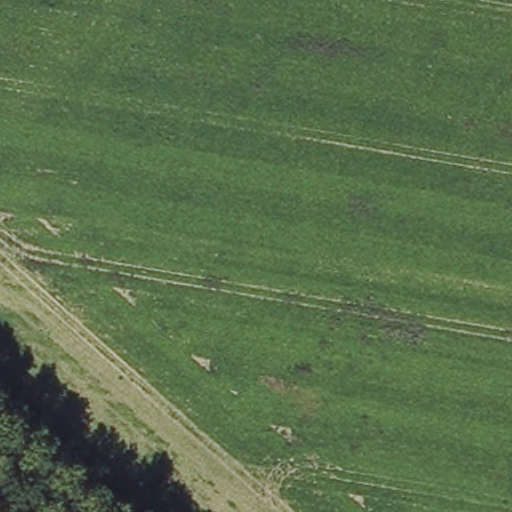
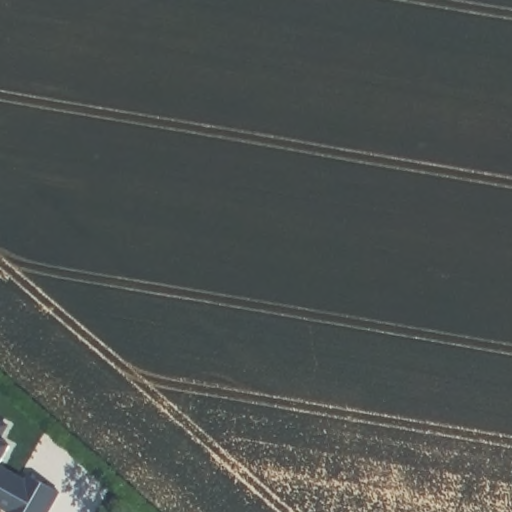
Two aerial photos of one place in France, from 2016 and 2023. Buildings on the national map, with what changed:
new [(12,443),(0,464),(0,420),(6,424),(0,436),(12,443)]
new [(61,490),(48,512),(12,512),(16,504),(0,494),(0,468),(26,483),(32,472),(61,490)]

